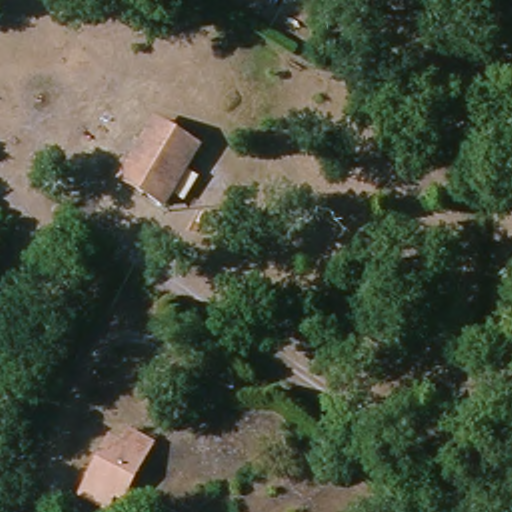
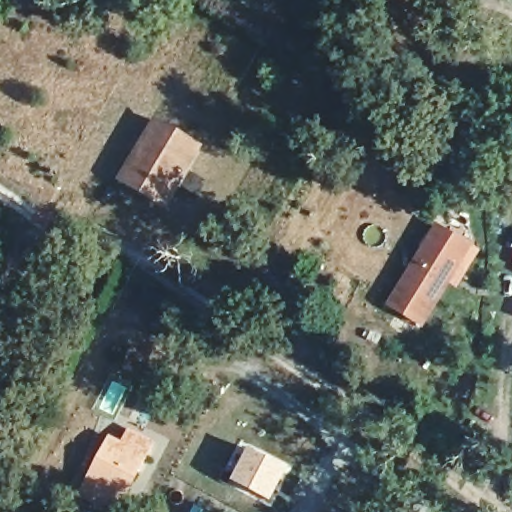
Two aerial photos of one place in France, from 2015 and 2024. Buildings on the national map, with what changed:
unchanged [(200,146),(164,209),(119,182),(155,116),(200,146)]
new [(387,307),(439,224),(475,247),(425,328),(387,307)]
unchanged [(84,479),(110,420),(152,436),(126,499),(112,493),(105,512),(103,512),(75,501),(84,479)]
new [(249,447),(291,467),(270,505),(229,482),(249,447)]

